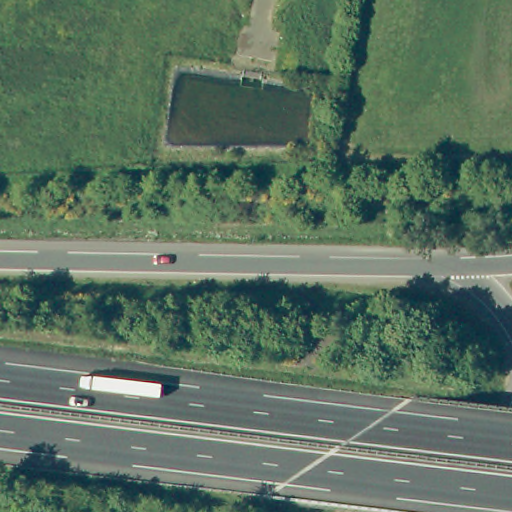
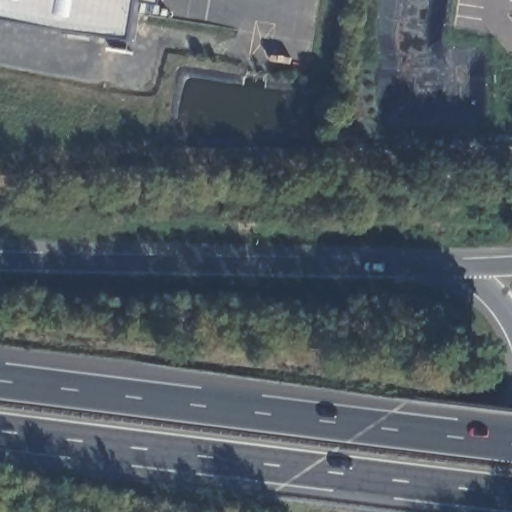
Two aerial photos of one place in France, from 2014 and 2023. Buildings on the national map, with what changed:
new [(160,5),(140,3),(133,41),(0,20),(0,0),(161,0),(160,5)]

